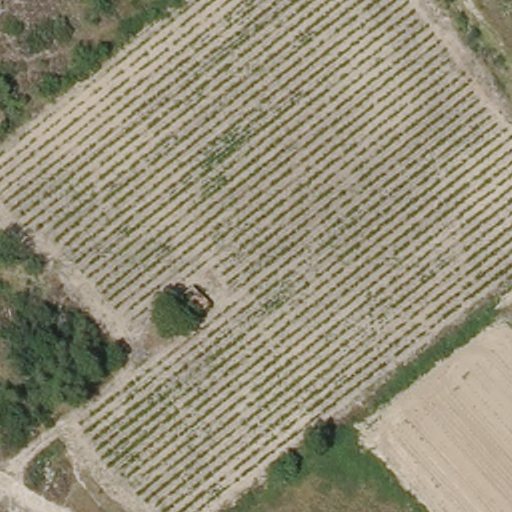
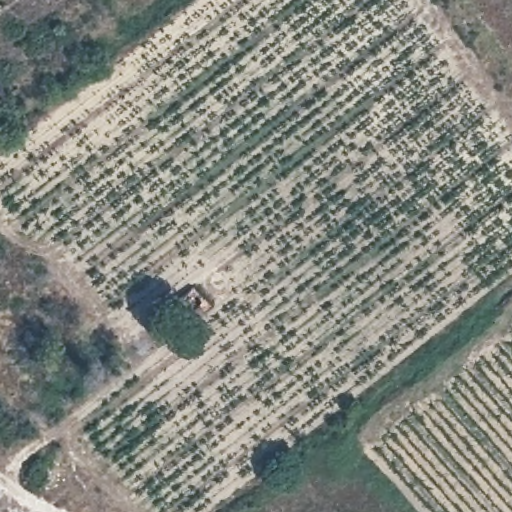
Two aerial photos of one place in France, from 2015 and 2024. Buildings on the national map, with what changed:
unchanged [(194,290),(211,310),(199,320),(183,298),(194,290)]

